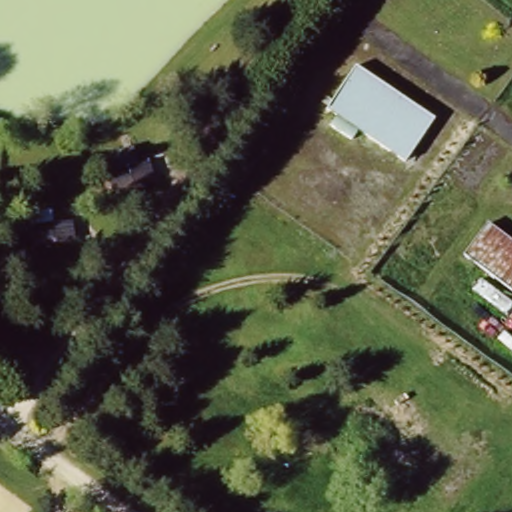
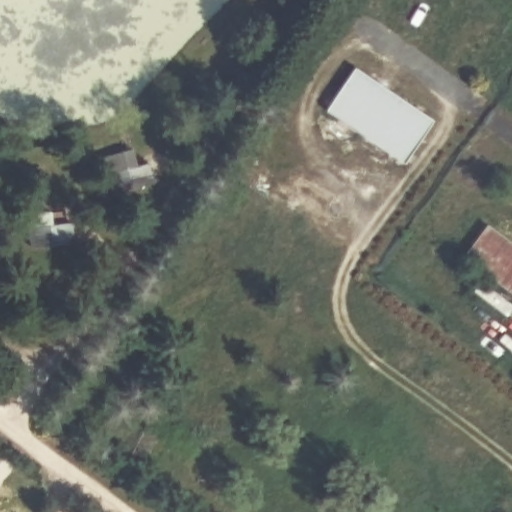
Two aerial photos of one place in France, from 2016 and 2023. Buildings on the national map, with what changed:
unchanged [(440,129),(408,172),(329,114),(362,70),(440,129)]
unchanged [(109,160),(132,154),(135,162),(154,157),(159,183),(117,189),(109,160)]
unchanged [(32,213),(57,210),(57,221),(77,219),(79,240),(35,243),(32,213)]
unchanged [(512,315),(457,276),(492,226),(512,241),(512,315)]

